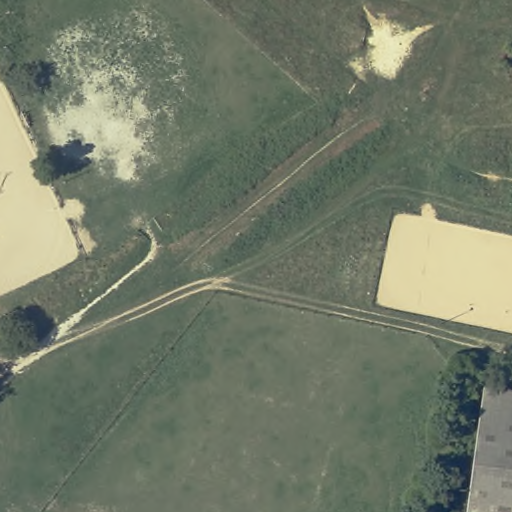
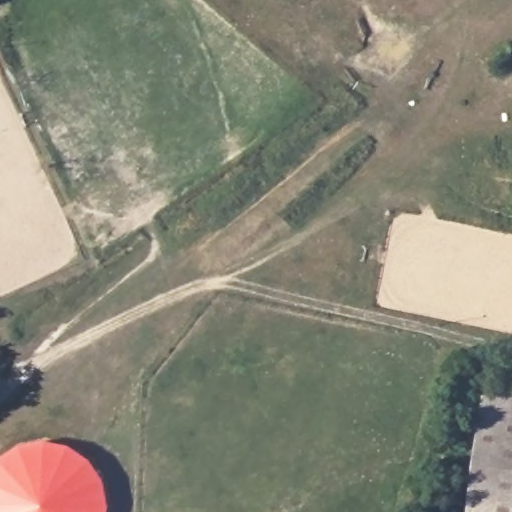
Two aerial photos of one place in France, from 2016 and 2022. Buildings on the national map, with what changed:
unchanged [(485,396),(512,401),(512,512),(469,512),(485,396)]
new [(17,445),(44,440),(69,446),(90,460),(104,482),(108,507),(107,512),(0,512),(0,458),(17,445)]

